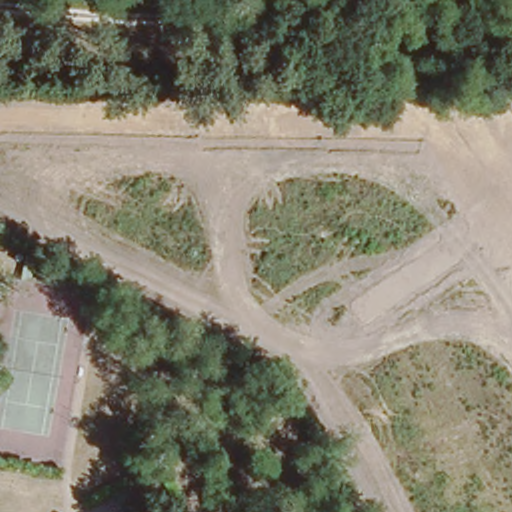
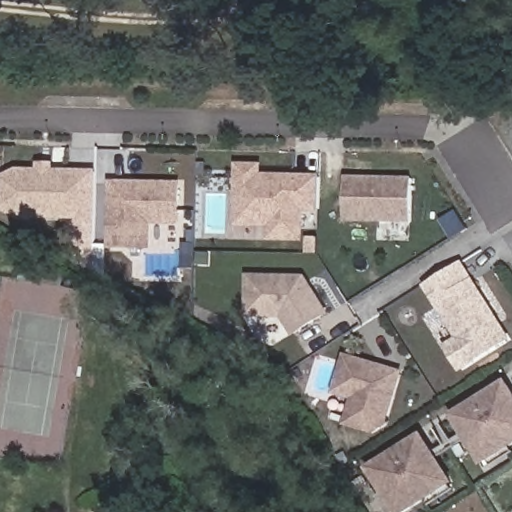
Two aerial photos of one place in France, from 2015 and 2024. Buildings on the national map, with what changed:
new [(95,170),(95,220),(17,219),(0,209),(0,178),(15,169),(35,169),(35,163),(53,162),(53,169),(95,170)]
new [(302,212),(303,242),(266,242),(266,227),(234,228),(234,163),(262,163),(262,174),(320,175),(317,212),(302,212)]
new [(344,221),(344,177),(411,177),(411,223),(344,221)]
new [(180,226),(150,226),(151,250),(107,249),(109,180),(180,181),(180,226)]
new [(422,286),(462,261),(511,340),(460,373),(442,346),(455,338),(422,286)]
new [(292,337),(280,317),(246,318),(246,276),(305,275),(329,314),(292,337)]
new [(345,427),(350,400),(332,395),(343,353),(402,371),(386,427),(373,435),(345,427)]
new [(512,452),(512,454),(487,468),(485,465),(480,468),(450,416),(507,379),(512,387),(512,448),(510,448),(512,452)]
new [(450,487),(453,492),(428,507),(426,502),(408,512),(385,512),(376,498),(382,495),(365,468),(421,433),(455,482),(450,487)]

